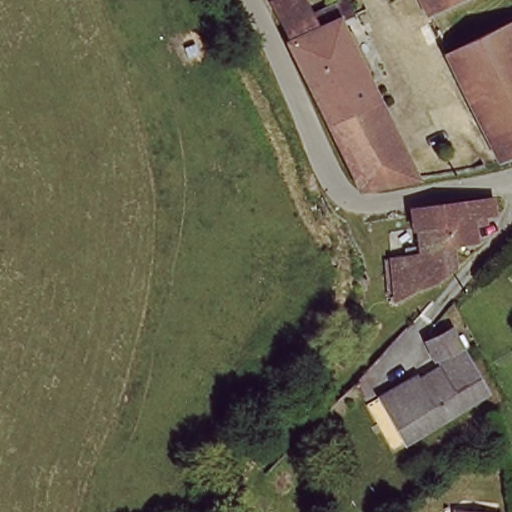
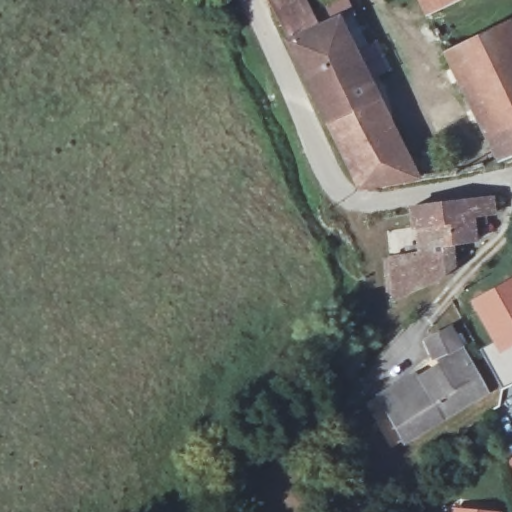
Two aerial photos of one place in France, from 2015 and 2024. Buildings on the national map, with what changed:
unchanged [(318,26),(289,37),(268,0),(306,0),(310,10),(318,26)]
unchanged [(281,39),(289,37),(318,26),(310,10),(335,0),(345,0),(351,13),(340,19),(386,118),(337,143),(281,39)]
unchanged [(424,0),(458,0),(430,13),(424,0)]
unchanged [(512,132),(491,139),(430,13),(458,0),(499,0),(512,26),(512,132)]
unchanged [(415,177),(361,187),(337,143),(386,118),(415,177)]
unchanged [(512,158),(502,161),(491,139),(512,132),(512,158)]
unchanged [(437,263),(429,229),(410,232),(405,212),(486,198),(490,214),(476,219),(478,233),(462,242),(467,254),(462,258),(420,279),(409,285),(398,293),(393,298),(391,261),(417,258),(420,267),(421,266),(437,263)]
new [(512,346),(497,354),(490,342),(467,300),(512,275),(512,346)]
unchanged [(407,441),(382,394),(442,361),(431,338),(456,327),(466,349),(486,394),(407,441)]
new [(497,354),(512,346),(512,385),(502,389),(480,348),(490,342),(497,354)]
unchanged [(460,509),(489,512),(459,512),(460,509)]

